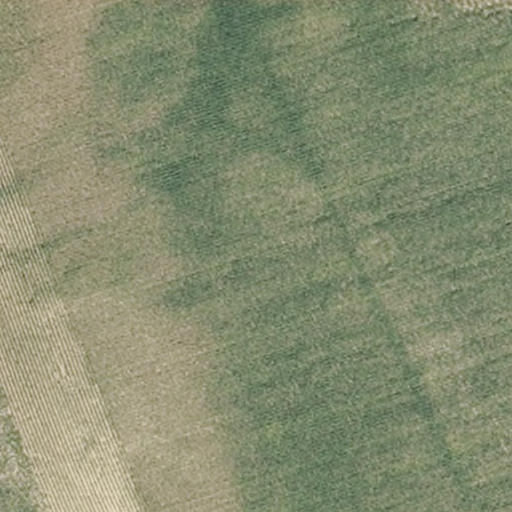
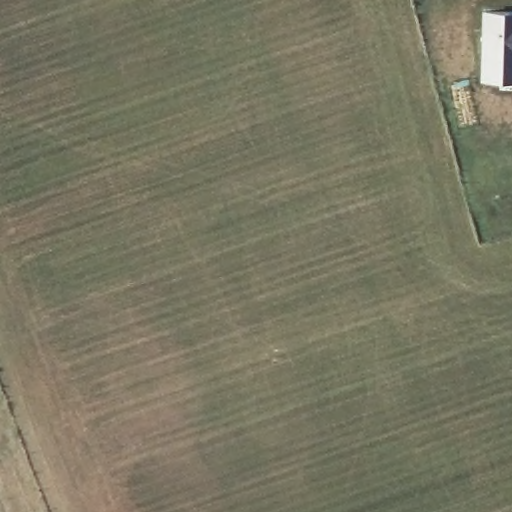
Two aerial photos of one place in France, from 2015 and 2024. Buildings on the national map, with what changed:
new [(482,8),(505,8),(504,79),(481,78),(482,8)]
new [(505,8),(512,9),(512,79),(504,79),(505,8)]

